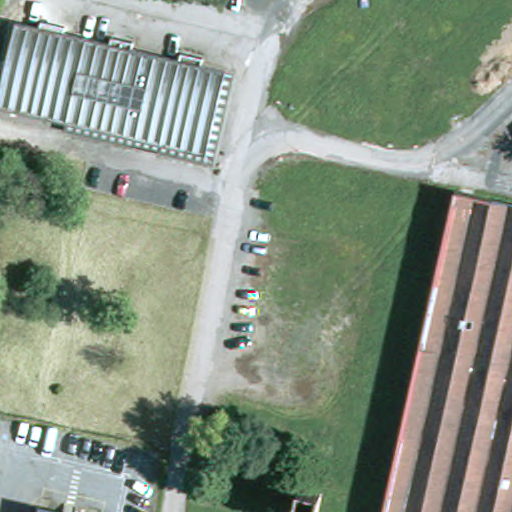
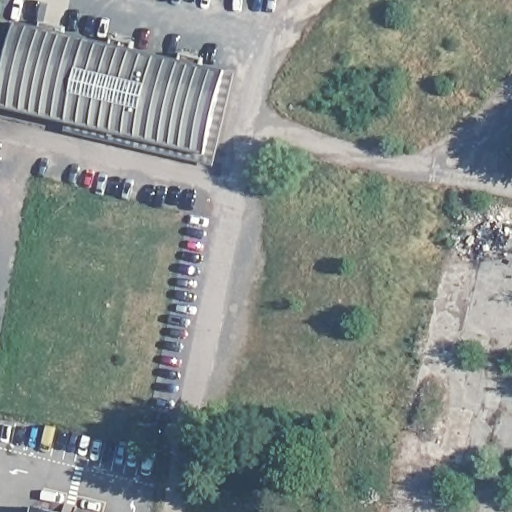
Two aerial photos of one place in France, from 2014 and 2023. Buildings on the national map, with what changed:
unchanged [(9,112),(27,30),(234,79),(217,163),(9,112)]
demolished [(512,214),(512,512),(391,512),(457,201),(512,214)]

